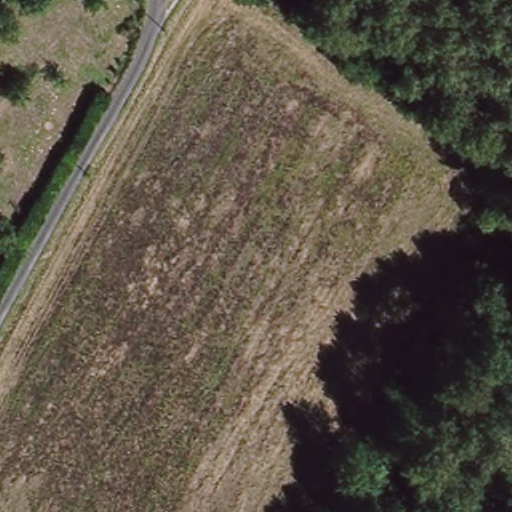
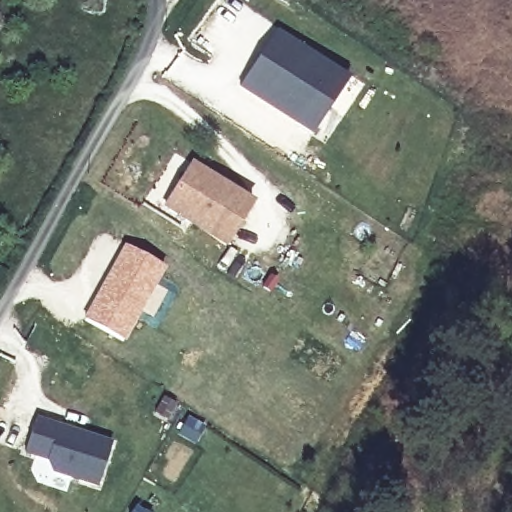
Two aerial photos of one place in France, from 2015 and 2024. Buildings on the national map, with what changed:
new [(350,78),(312,136),(238,89),(275,30),(350,78)]
new [(255,206),(229,247),(164,207),(191,165),(255,206)]
new [(123,244),(166,268),(157,285),(167,290),(152,318),(142,312),(125,342),(82,318),(123,244)]
new [(77,432),(87,435),(111,443),(97,484),(53,470),(47,458),(25,451),(36,418),(77,432)]

